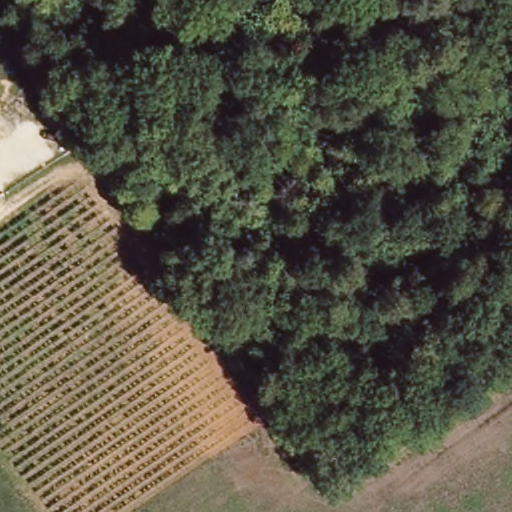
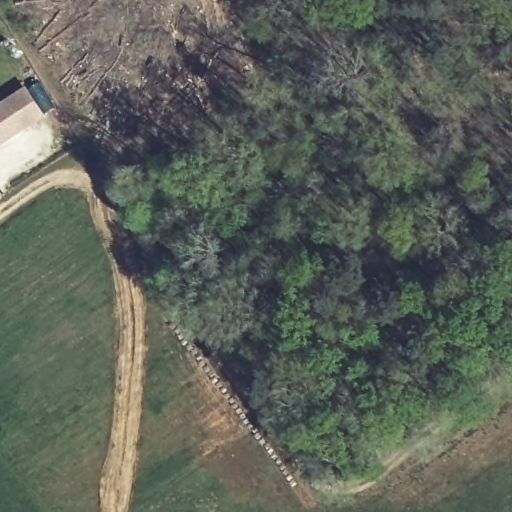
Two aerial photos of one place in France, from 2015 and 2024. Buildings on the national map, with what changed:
new [(23,86),(43,116),(0,145),(0,102),(23,86)]

